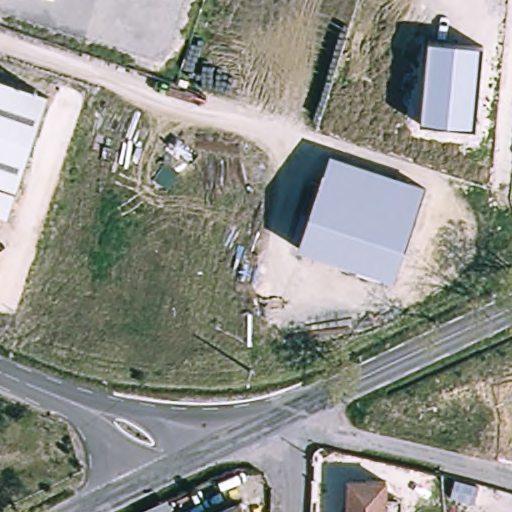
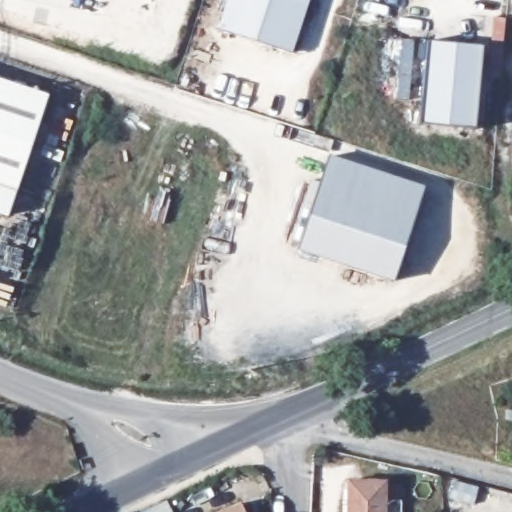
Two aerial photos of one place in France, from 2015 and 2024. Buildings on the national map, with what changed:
new [(232,0),(311,0),(299,42),(225,22),(232,0)]
unchanged [(422,123),(430,43),(482,47),(474,128),(422,123)]
unchanged [(7,215),(0,213),(0,81),(45,95),(7,215)]
unchanged [(427,188),(395,279),(300,250),(332,156),(427,188)]
unchanged [(387,482),(387,512),(352,512),(352,483),(387,482)]
unchanged [(244,512),(221,512),(240,503),(244,512)]

